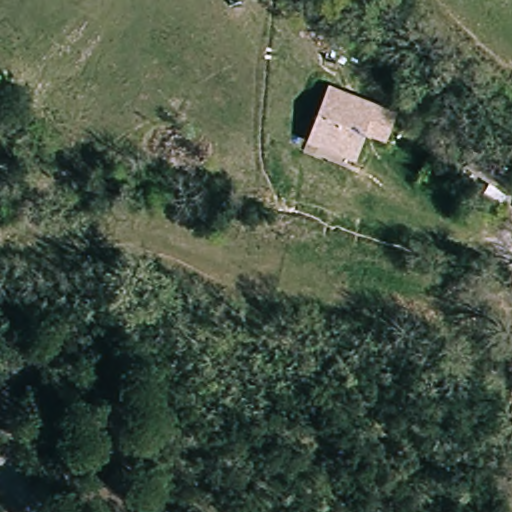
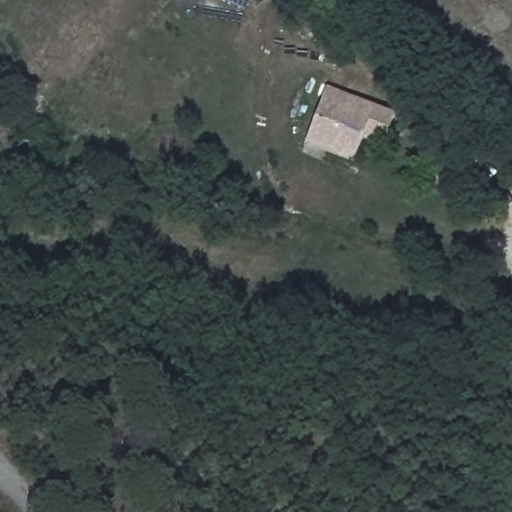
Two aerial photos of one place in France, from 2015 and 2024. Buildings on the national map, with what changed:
unchanged [(363,137),(353,162),(304,144),(326,86),(395,112),(384,142),(363,137)]

